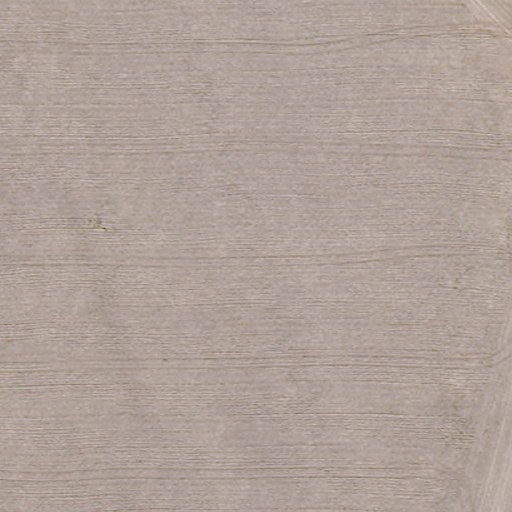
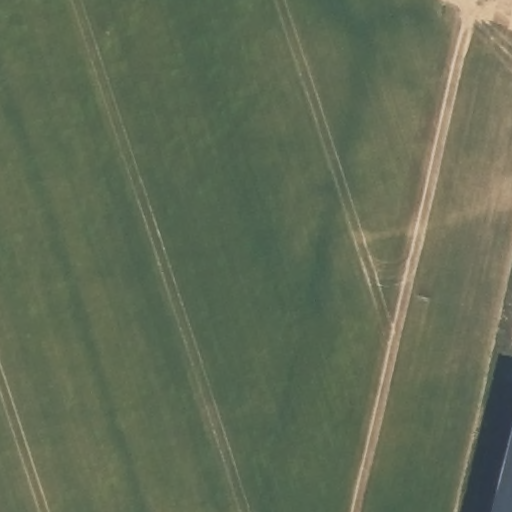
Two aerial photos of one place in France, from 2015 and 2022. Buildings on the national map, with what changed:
new [(512,418),(512,512),(487,512),(512,418)]

